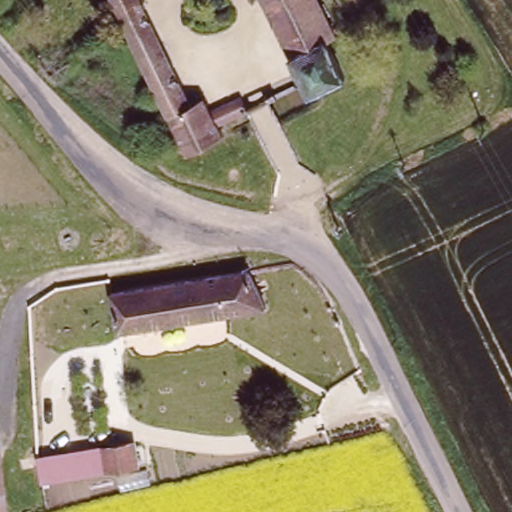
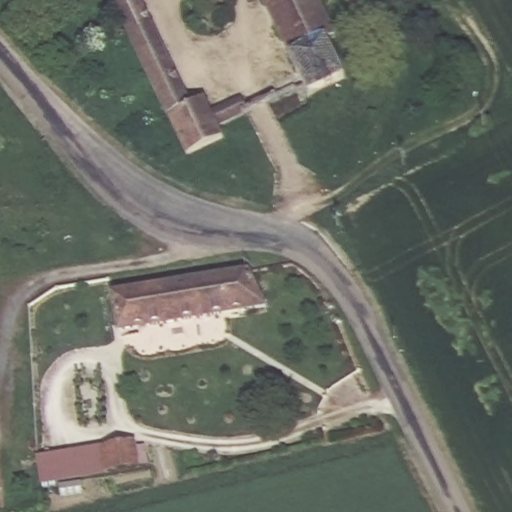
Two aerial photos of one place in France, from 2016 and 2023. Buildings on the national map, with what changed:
unchanged [(205,96),(212,109),(240,95),(247,110),(219,125),(224,135),(187,153),(114,0),(141,0),(190,103),(205,96)]
unchanged [(261,0),(319,0),(337,35),(325,40),(343,78),(308,95),(303,85),(261,0)]
unchanged [(95,296),(251,271),(266,309),(100,335),(95,296)]
unchanged [(39,458),(107,446),(137,441),(142,466),(112,471),(45,483),(39,458)]
unchanged [(0,494),(0,479),(2,494),(0,494)]
unchanged [(2,494),(3,512),(0,512),(0,494),(2,494)]

